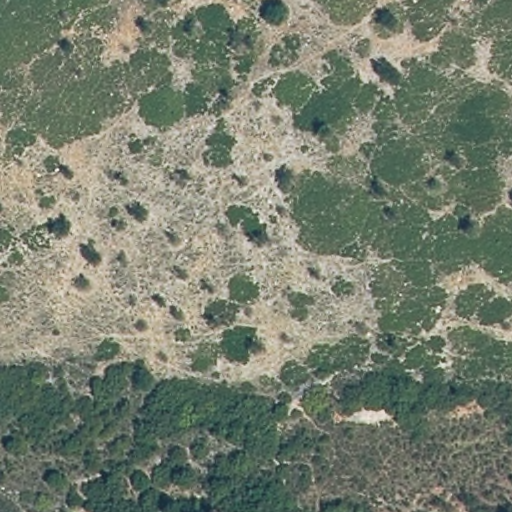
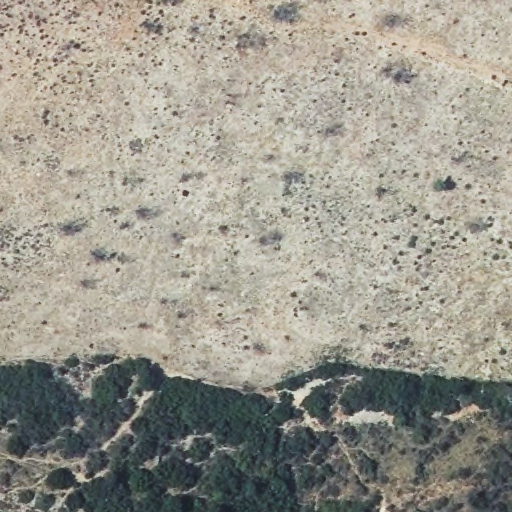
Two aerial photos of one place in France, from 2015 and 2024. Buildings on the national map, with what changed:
[]

